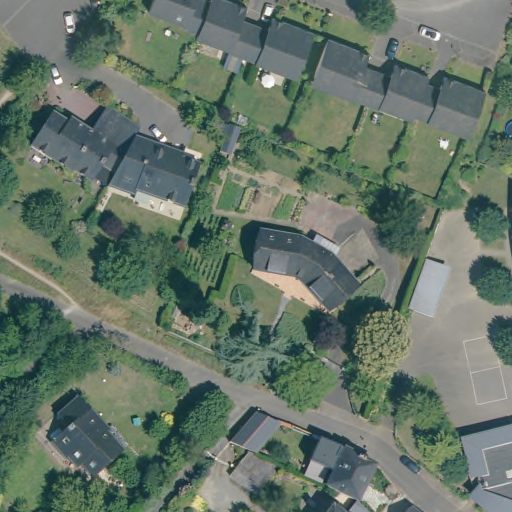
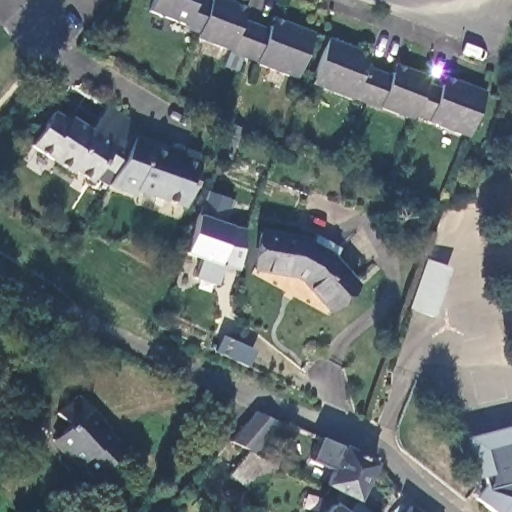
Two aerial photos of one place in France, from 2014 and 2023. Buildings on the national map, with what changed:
unchanged [(255,63),(257,59),(231,50),(232,47),(201,36),(201,34),(185,28),(186,24),(149,10),(152,0),(203,0),(211,3),(213,0),(225,0),(235,3),(247,8),(245,14),(245,17),(268,25),(270,22),(272,16),(281,20),(314,31),(299,74),(294,72),(292,76),(255,63)]
unchanged [(465,129),(462,128),(432,117),(433,115),(416,109),(414,113),(383,102),(382,105),(355,95),(348,96),(317,85),(310,82),(311,78),(326,35),(361,48),(369,51),(366,58),(365,63),(395,74),(397,69),(400,63),(406,65),(428,73),(426,80),(442,86),(444,81),(446,75),(454,77),(481,87),(486,89),(478,112),(473,126),(471,131),(465,129)]
unchanged [(105,158),(93,176),(75,165),(73,168),(32,143),(54,109),(71,120),(74,115),(95,127),(111,102),(143,123),(137,134),(119,167),(105,158)]
unchanged [(229,158),(219,155),(227,129),(237,133),(229,158)]
unchanged [(169,148),(167,153),(199,168),(183,209),(154,196),(152,190),(138,183),(135,191),(111,181),(119,167),(137,134),(169,148)]
new [(222,223),(234,228),(243,229),(239,270),(224,268),(215,286),(192,278),(200,260),(185,255),(199,214),(207,191),(233,200),(222,223)]
unchanged [(271,234),(311,240),(338,255),(367,286),(343,311),(315,281),(306,277),(266,269),(271,234)]
unchanged [(444,270),(428,317),(407,310),(423,263),(444,270)]
unchanged [(106,418),(102,421),(125,446),(96,472),(75,448),(71,452),(58,437),(73,423),(61,410),(82,391),(106,418)]
unchanged [(255,456),(229,443),(254,411),(281,426),(255,456)]
unchanged [(495,507),(475,490),(480,485),(468,434),(512,424),(512,512),(501,512),(495,507)]
unchanged [(255,456),(273,466),(263,490),(234,476),(225,489),(207,472),(229,443),(255,456)]
unchanged [(355,451),(387,468),(367,503),(336,487),(355,451)]
unchanged [(370,504),(377,512),(363,512),(370,504)]
unchanged [(345,509),(348,512),(342,512),(345,509)]
unchanged [(420,509),(423,512),(418,512),(420,509)]

